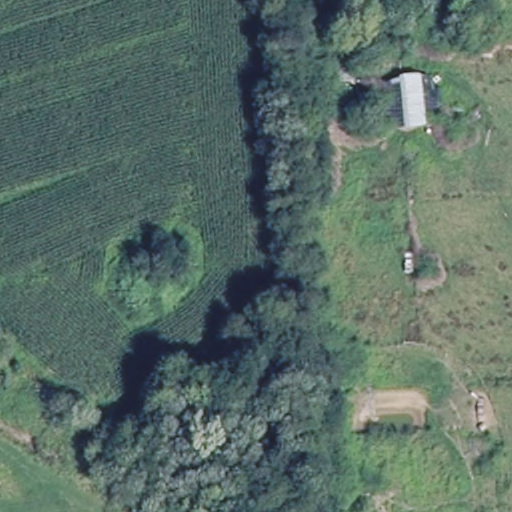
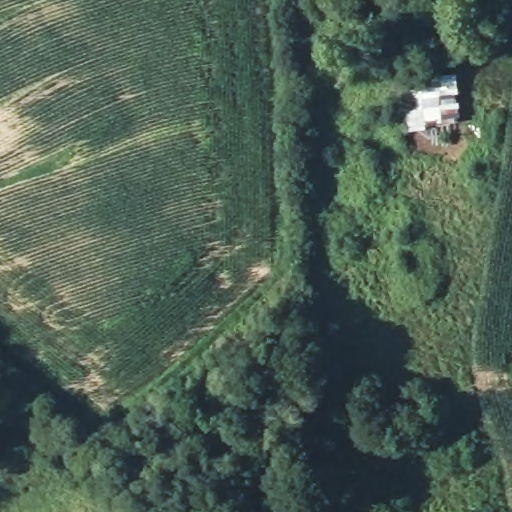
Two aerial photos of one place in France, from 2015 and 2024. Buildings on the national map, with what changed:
unchanged [(430,127),(410,131),(405,77),(423,75),(430,127)]

